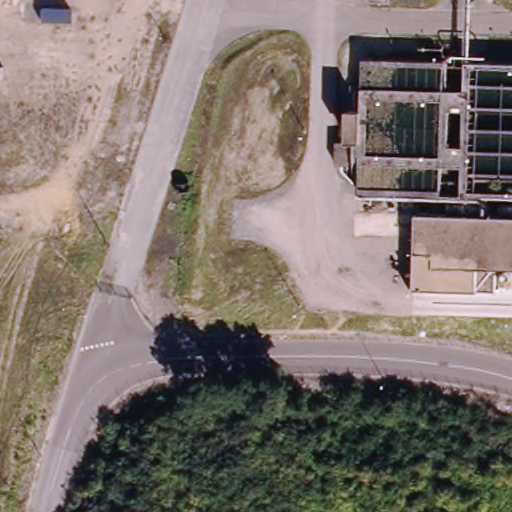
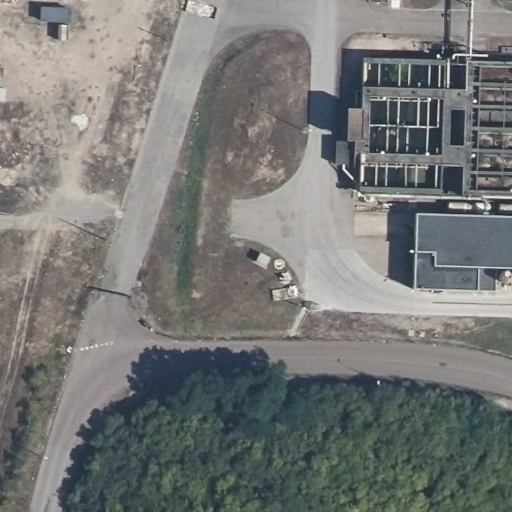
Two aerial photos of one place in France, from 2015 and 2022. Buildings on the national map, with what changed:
unchanged [(369,41),(512,45),(512,193),(365,189),(369,41)]
unchanged [(497,266),(497,285),(407,282),(410,209),(512,212),(512,266),(497,266)]

